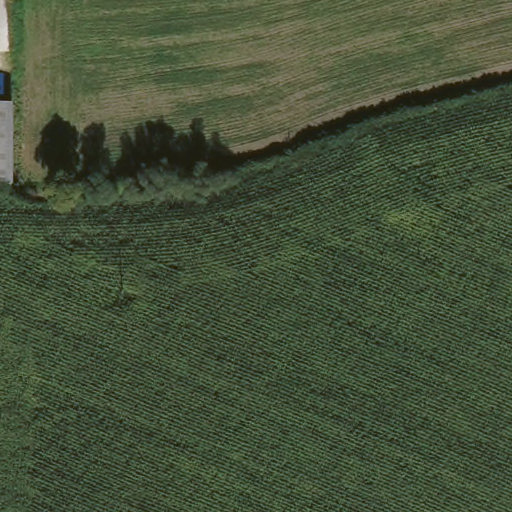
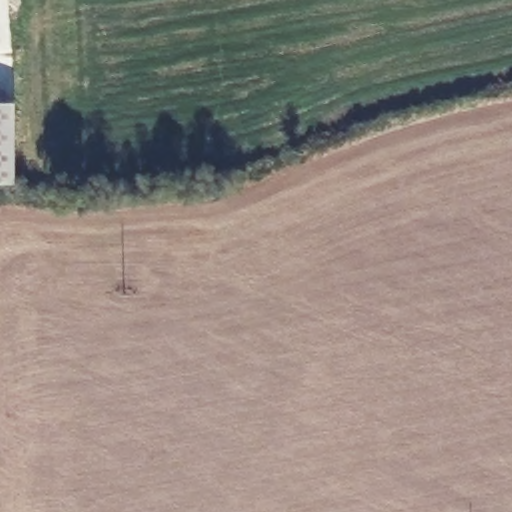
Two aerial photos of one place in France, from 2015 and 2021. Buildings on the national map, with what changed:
unchanged [(16,102),(16,183),(0,183),(0,102),(16,102)]

